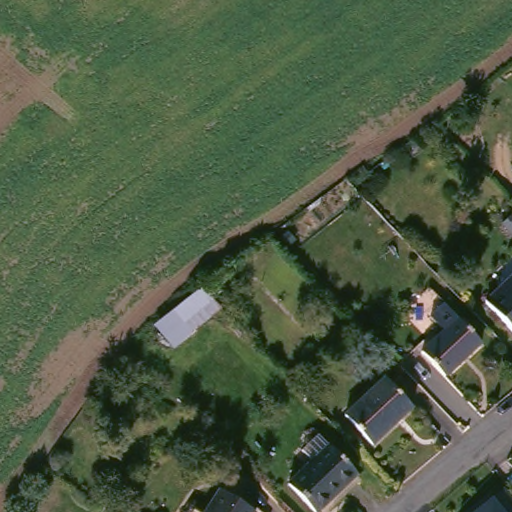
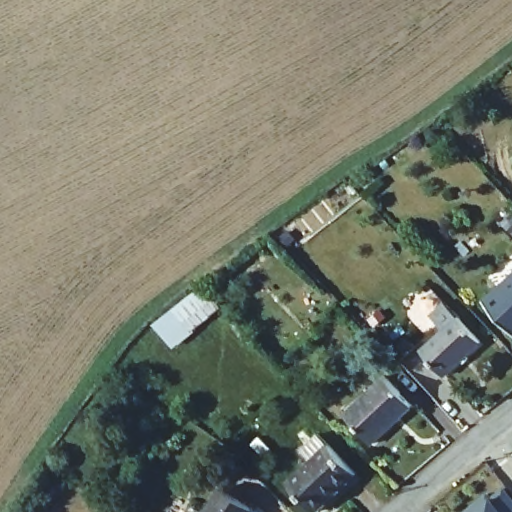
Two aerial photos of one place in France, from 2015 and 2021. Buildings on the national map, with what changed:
unchanged [(185,347),(163,321),(213,281),(232,305),(185,347)]
unchanged [(494,302),(512,285),(512,321),(494,302)]
unchanged [(490,338),(453,372),(429,345),(465,312),(490,338)]
unchanged [(381,440),(353,410),(394,374),(421,404),(381,440)]
unchanged [(327,512),(325,512),(298,483),(321,461),(311,450),(327,435),(365,475),(327,512)]
unchanged [(227,490),(262,512),(214,512),(227,490)]
unchanged [(502,491),(512,506),(512,512),(473,512),(502,491)]
unchanged [(199,505),(211,512),(195,512),(199,505)]

